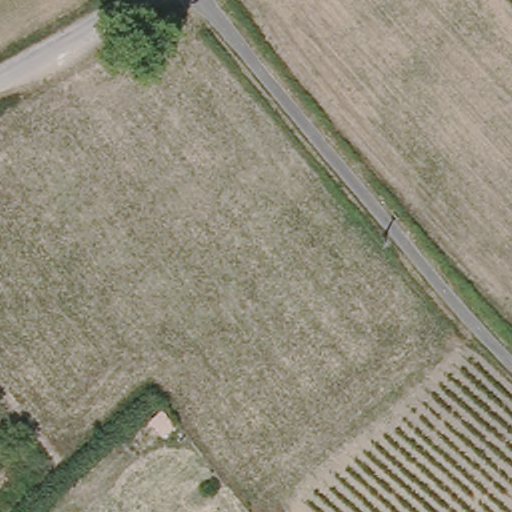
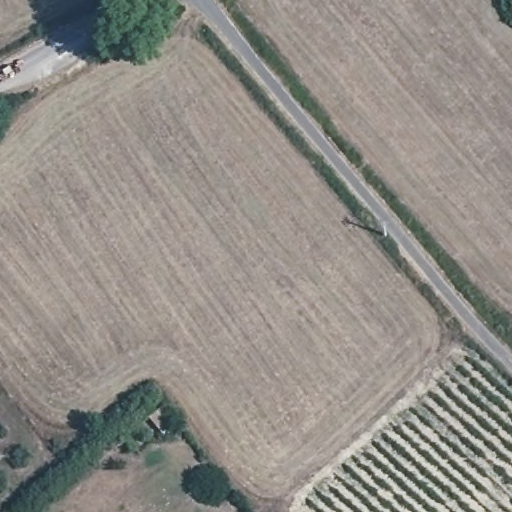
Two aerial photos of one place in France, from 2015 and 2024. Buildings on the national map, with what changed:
[]

